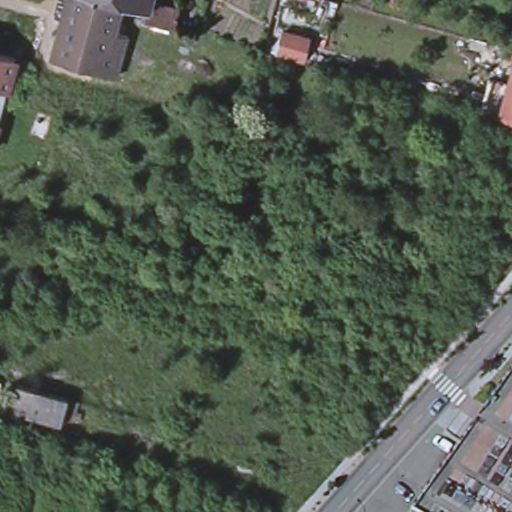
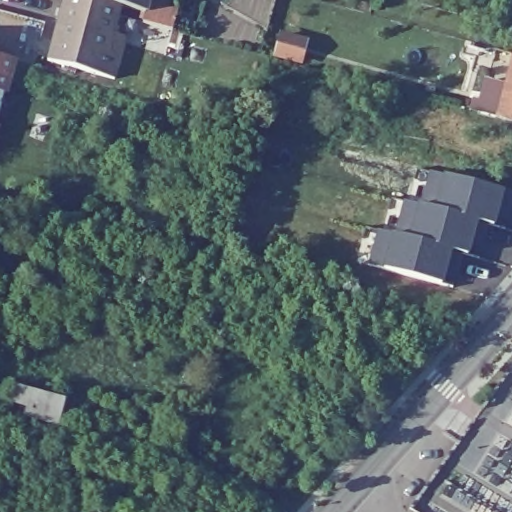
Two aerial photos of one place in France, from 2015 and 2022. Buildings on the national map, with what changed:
unchanged [(153,13),(146,11),(123,5),(120,4),(108,47),(74,37),(73,42),(54,37),(64,0),(149,0),(148,5),(156,8),(153,13)]
unchanged [(73,42),(74,37),(108,47),(121,50),(114,75),(48,57),(54,37),(73,42)]
unchanged [(13,59),(3,92),(0,92),(0,56),(13,59)]
unchanged [(483,112),(492,79),(511,85),(512,81),(512,120),(502,117),(483,112)]
new [(431,170),(445,174),(512,192),(512,204),(510,211),(498,208),(493,225),(489,223),(422,205),(422,204),(428,181),(431,170)]
new [(402,210),(405,200),(419,203),(422,204),(422,205),(489,223),(484,241),(472,237),(467,254),(462,253),(462,252),(395,235),(396,234),(402,210)]
new [(379,229),(393,233),(396,234),(395,235),(462,252),(462,253),(457,270),(446,267),(441,284),(369,264),(376,240),(379,229)]
unchanged [(63,398),(58,423),(0,407),(0,384),(63,398)]

